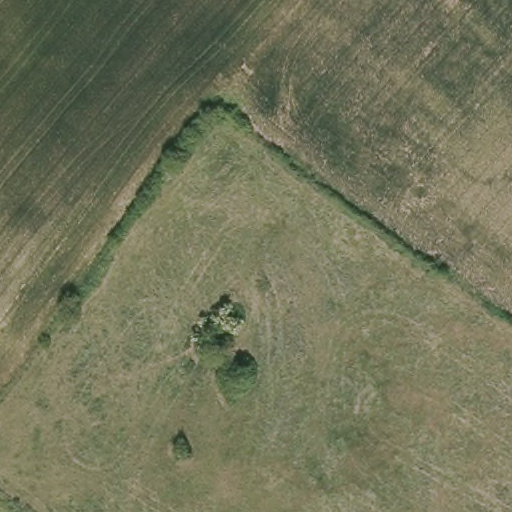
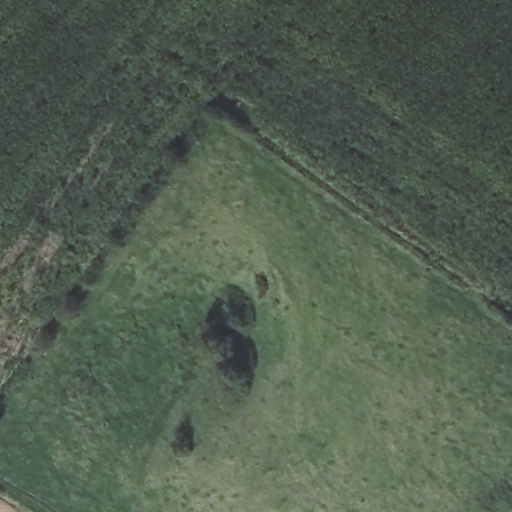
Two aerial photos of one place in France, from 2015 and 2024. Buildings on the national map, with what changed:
[]

